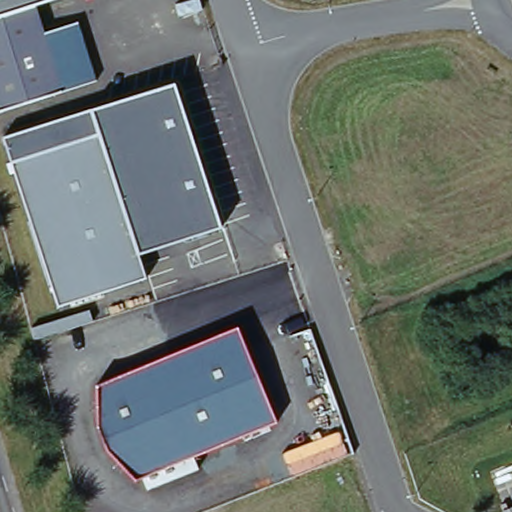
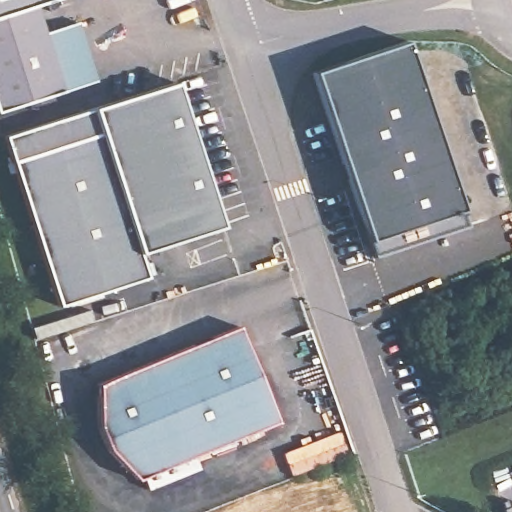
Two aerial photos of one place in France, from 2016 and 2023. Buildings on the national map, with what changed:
unchanged [(36,4),(43,30),(79,19),(96,78),(0,110),(0,0),(49,0),(36,4)]
new [(397,43),(459,228),(366,256),(305,74),(397,43)]
unchanged [(5,167),(0,153),(0,137),(94,109),(177,82),(222,226),(136,255),(95,139),(5,167)]
unchanged [(5,167),(95,139),(146,282),(57,311),(5,167)]
unchanged [(90,393),(230,333),(272,427),(131,486),(102,457),(92,434),(90,393)]

